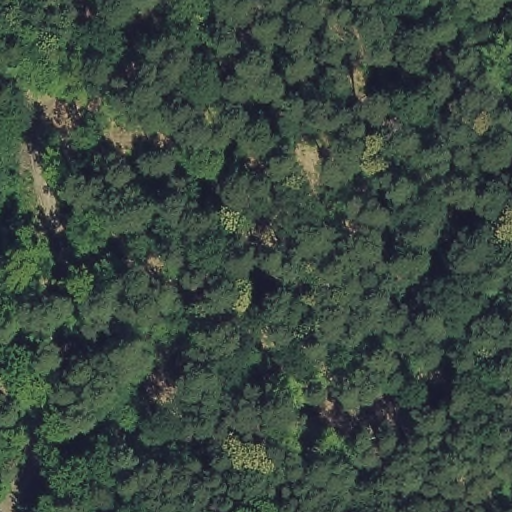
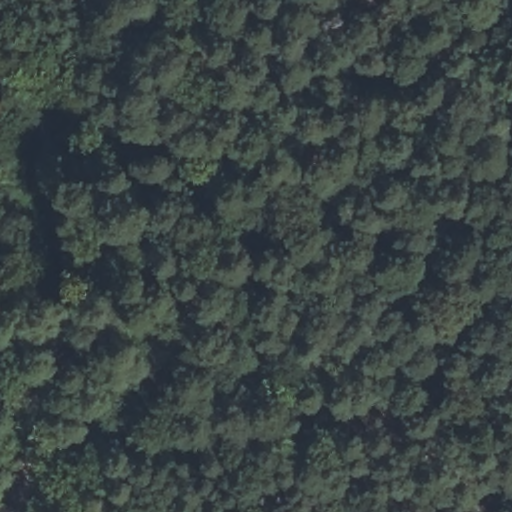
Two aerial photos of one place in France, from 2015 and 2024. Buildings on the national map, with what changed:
[]

